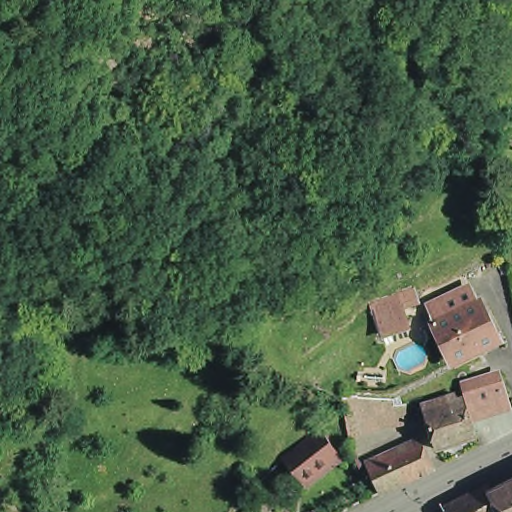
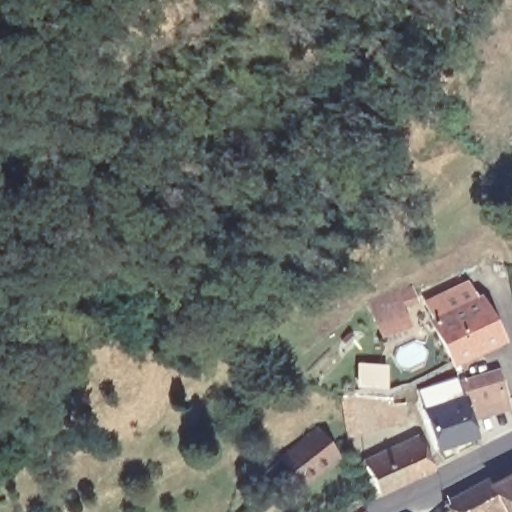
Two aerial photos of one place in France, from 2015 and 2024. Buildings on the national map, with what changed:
unchanged [(420,301),(405,307),(412,329),(383,340),(372,302),(415,287),(420,301)]
unchanged [(433,328),(480,306),(498,343),(451,365),(433,328)]
unchanged [(498,381),(507,407),(474,417),(466,391),(498,381)]
unchanged [(436,453),(422,413),(418,404),(458,390),(461,395),(463,400),(476,440),(436,453)]
unchanged [(348,435),(343,405),(343,404),(388,396),(390,396),(391,404),(405,402),(408,425),(348,435)]
unchanged [(286,463),(325,433),(341,454),(347,464),(309,491),(302,482),(286,463)]
unchanged [(365,466),(418,441),(431,474),(378,499),(365,466)]
unchanged [(490,484),(512,473),(512,512),(502,512),(490,484)]
unchanged [(443,509),(448,506),(445,497),(485,476),(488,480),(490,484),(502,512),(436,512),(443,509)]

